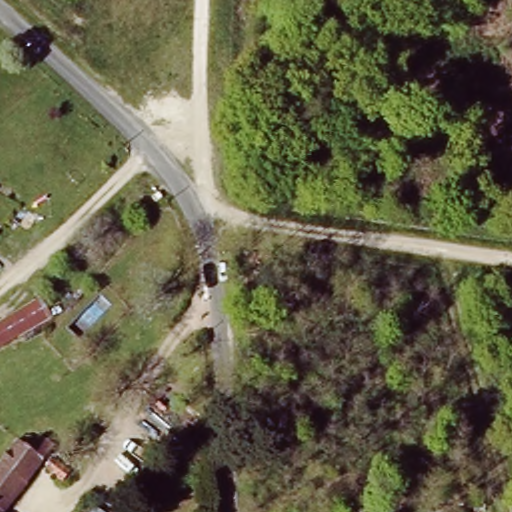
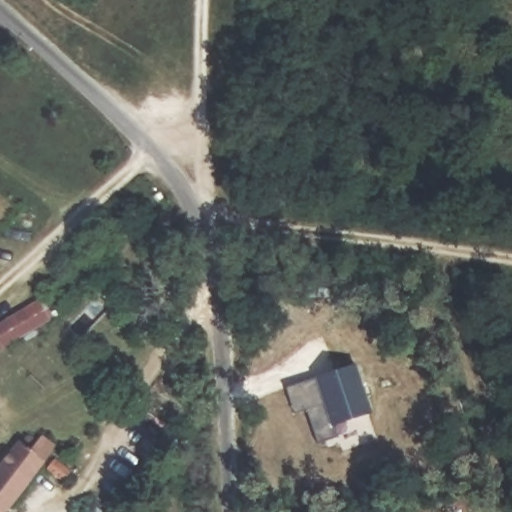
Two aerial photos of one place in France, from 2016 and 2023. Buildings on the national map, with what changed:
unchanged [(44,317),(0,342),(0,320),(34,300),(44,317)]
new [(352,418),(352,415),(335,422),(339,435),(320,441),(308,408),(326,402),(322,383),(339,377),(337,370),(357,365),(374,411),(352,418)]
unchanged [(4,512),(0,512),(0,464),(20,438),(32,447),(42,434),(57,445),(50,453),(4,512)]

